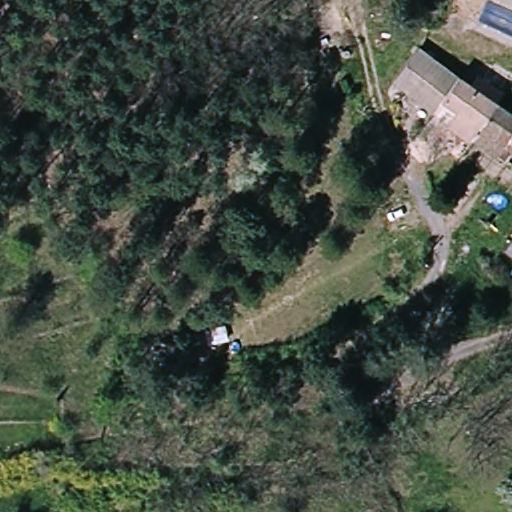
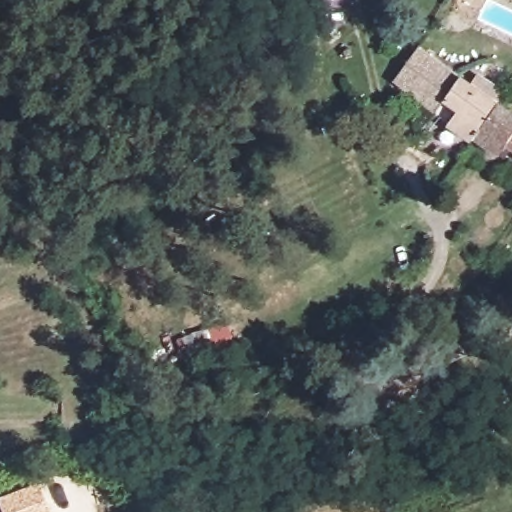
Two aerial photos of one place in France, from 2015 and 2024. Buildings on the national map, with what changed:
unchanged [(429,59),(499,100),(475,139),(473,142),(449,129),(453,123),(406,94),(429,59)]
unchanged [(503,155),(475,139),(499,100),(512,109),(512,151),(508,148),(503,155)]
unchanged [(359,156),(377,151),(386,176),(368,183),(359,156)]
new [(52,511),(49,512),(3,512),(0,503),(0,499),(40,482),(52,511)]

